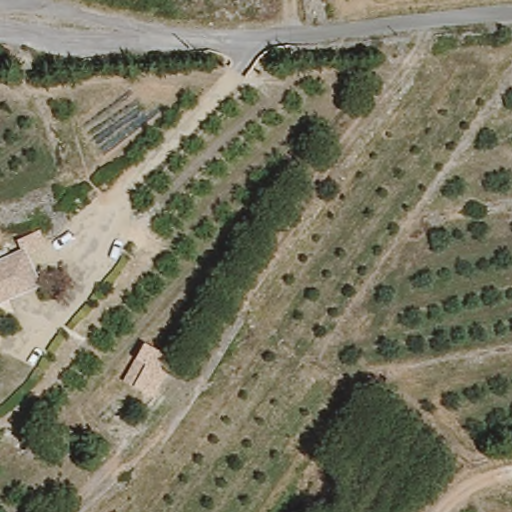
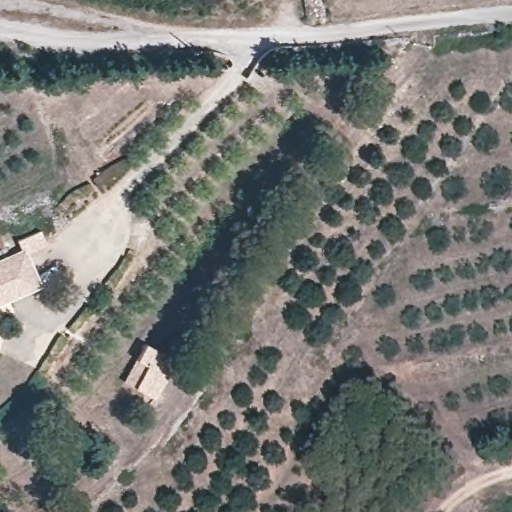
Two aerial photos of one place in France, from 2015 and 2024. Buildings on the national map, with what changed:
unchanged [(21,250),(17,241),(41,230),(48,244),(29,254),(45,289),(31,295),(20,268),(0,277),(0,258),(21,250)]
unchanged [(20,268),(31,295),(0,307),(0,277),(20,268)]
unchanged [(122,382),(143,342),(177,362),(156,400),(122,382)]

